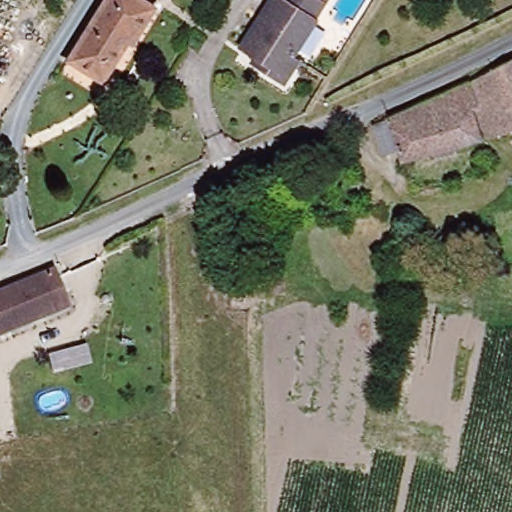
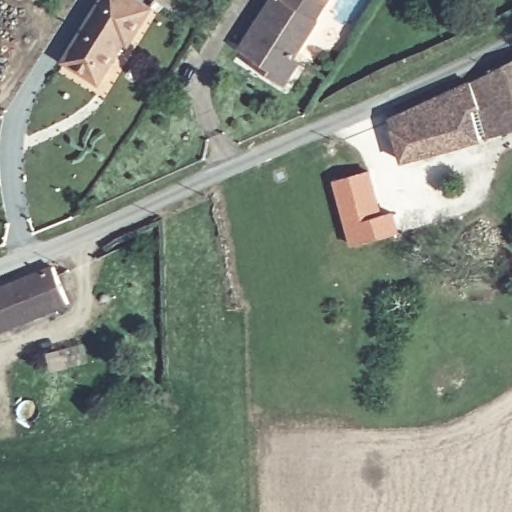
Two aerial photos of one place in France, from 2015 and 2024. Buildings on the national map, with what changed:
unchanged [(147,9),(126,44),(122,42),(97,83),(96,82),(62,62),(100,0),(133,0),(147,9)]
unchanged [(256,55),(240,45),(270,0),(326,0),(314,18),(316,20),(293,55),(298,58),(284,81),(260,66),(252,61),(256,55)]
unchanged [(512,59),(512,131),(484,139),(475,109),(471,109),(479,140),(400,162),(397,149),(371,125),(512,59)]
new [(370,169),(383,212),(394,210),(400,232),(350,245),(331,179),(370,169)]
unchanged [(53,265),(69,303),(0,332),(0,287),(50,266),(53,265)]

